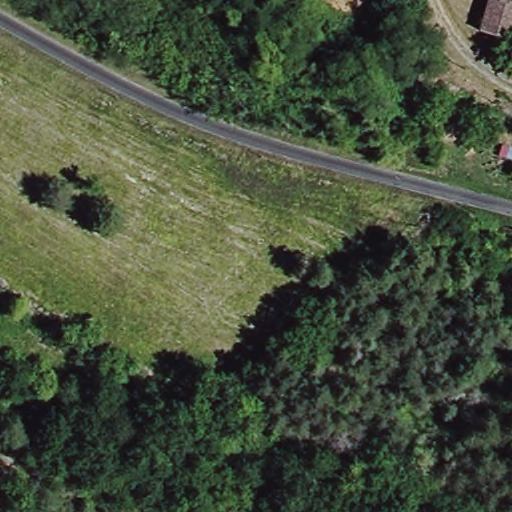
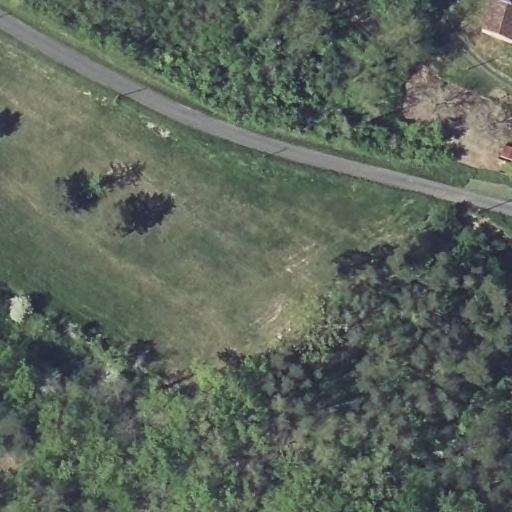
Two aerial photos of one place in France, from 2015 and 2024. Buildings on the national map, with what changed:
unchanged [(492,0),(506,0),(512,3),(512,40),(480,25),(492,0)]

